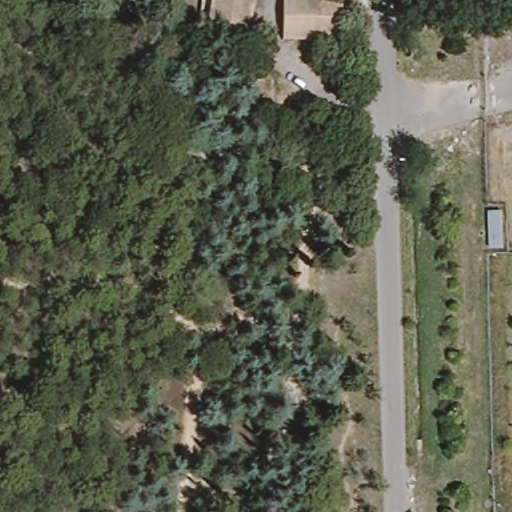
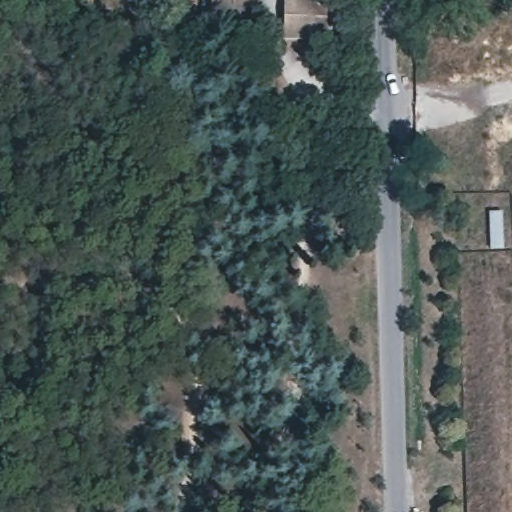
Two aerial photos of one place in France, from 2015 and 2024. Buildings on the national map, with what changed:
unchanged [(207,28),(212,0),(255,0),(248,36),(207,28)]
unchanged [(342,0),(342,37),(283,36),(284,0),(342,0)]

